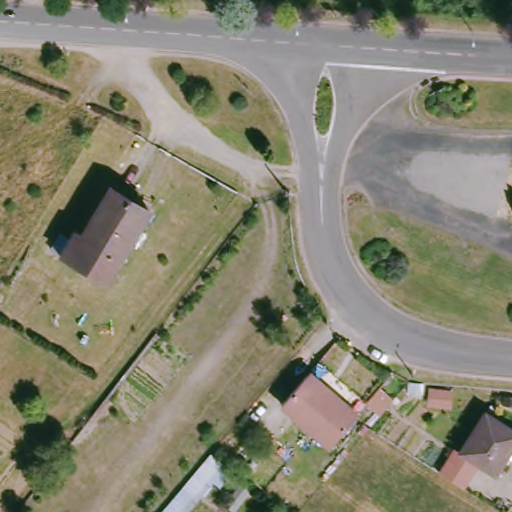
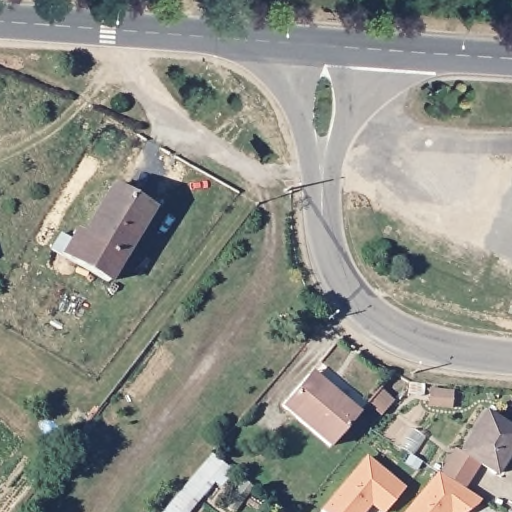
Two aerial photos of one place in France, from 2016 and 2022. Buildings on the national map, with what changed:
unchanged [(77,235),(82,236),(106,187),(148,206),(110,281),(64,260),(77,235)]
unchanged [(327,449),(281,409),(307,380),(310,377),(333,396),(356,415),(327,449)]
unchanged [(428,398),(410,396),(413,381),(430,386),(428,398)]
unchanged [(512,427),(512,447),(497,469),(464,450),(490,413),(512,427)]
new [(456,450),(478,463),(462,487),(484,501),(480,505),(470,512),(408,512),(441,473),(456,450)]
unchanged [(207,491),(212,496),(197,512),(167,512),(215,456),(228,466),(207,491)]
new [(368,456),(405,487),(385,512),(372,501),(363,512),(325,512),(323,510),(368,456)]

